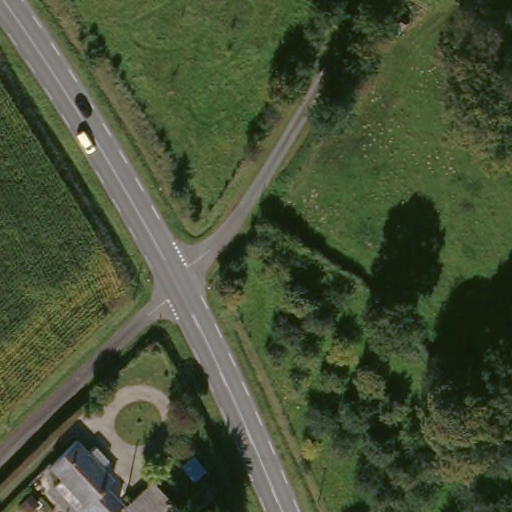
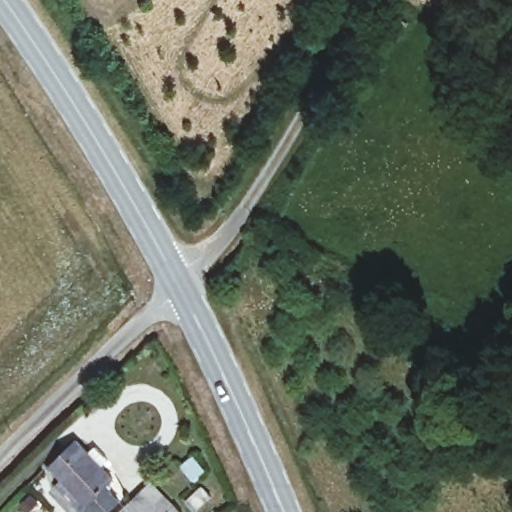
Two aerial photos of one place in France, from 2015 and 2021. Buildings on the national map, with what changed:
unchanged [(53,463),(77,441),(113,478),(106,485),(123,500),(112,512),(84,512),(83,510),(54,484),(64,474),(53,463)]
unchanged [(177,512),(125,512),(150,485),(177,512)]

